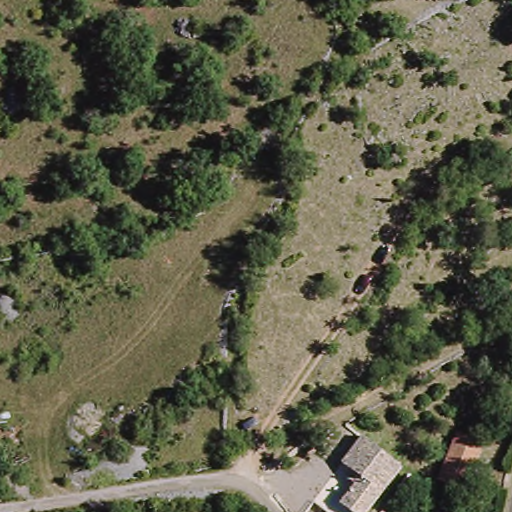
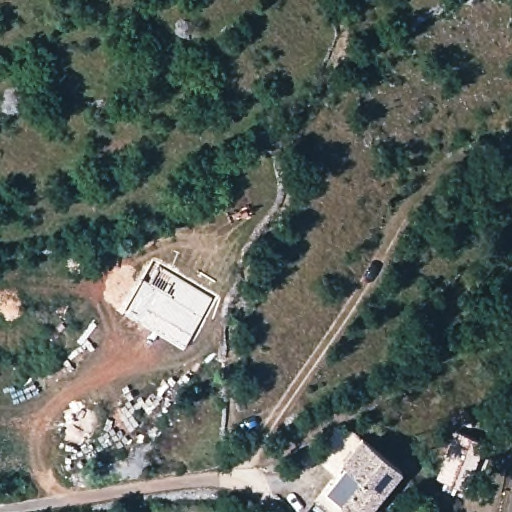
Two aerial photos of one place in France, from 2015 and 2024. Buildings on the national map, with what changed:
new [(152,257),(216,295),(184,348),(120,310),(152,257)]
unchanged [(485,443),(467,492),(439,483),(457,435),(485,443)]
unchanged [(342,462),(361,437),(402,467),(368,512),(353,512),(340,502),(362,477),(342,462)]
new [(362,477),(340,502),(353,512),(326,512),(314,502),(342,462),(351,470),(362,477)]

